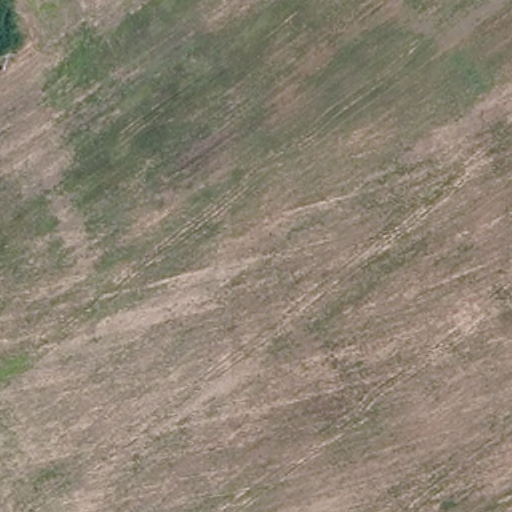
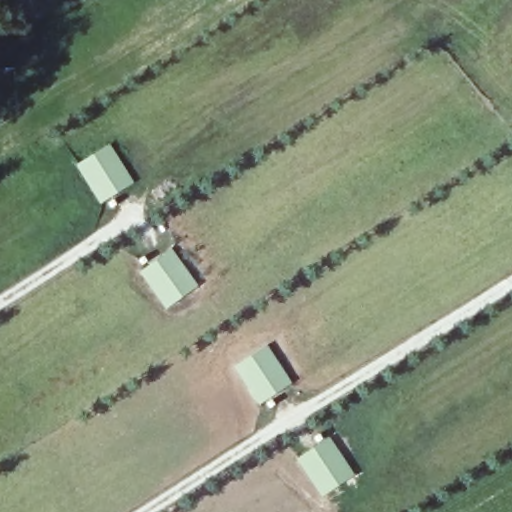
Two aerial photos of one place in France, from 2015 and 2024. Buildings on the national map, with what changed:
new [(109,144),(134,182),(100,204),(75,166),(109,144)]
new [(172,249),(198,285),(166,309),(139,272),(172,249)]
new [(266,345),(292,383),(259,405),(234,366),(266,345)]
new [(329,437),(355,475),(321,497),(296,459),(329,437)]

